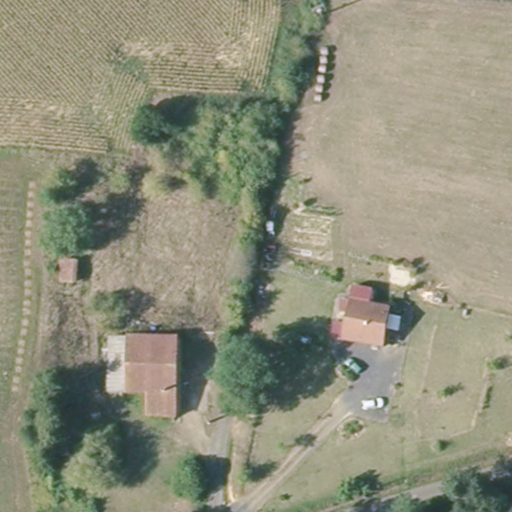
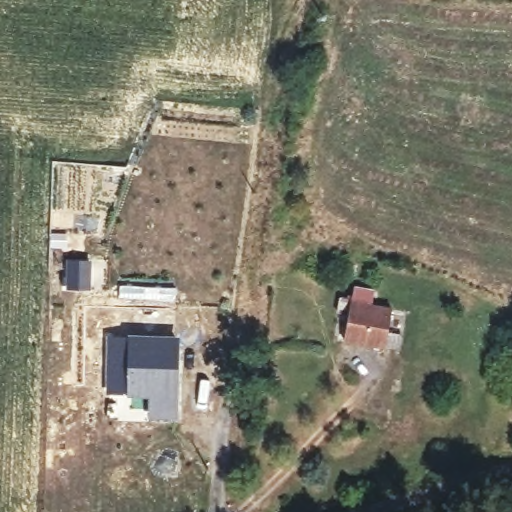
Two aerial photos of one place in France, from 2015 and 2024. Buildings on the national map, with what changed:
unchanged [(391,343),(350,337),(355,299),(396,303),(391,343)]
unchanged [(180,413),(154,412),(154,392),(112,388),(114,352),(132,352),(134,338),(184,340),(180,413)]

